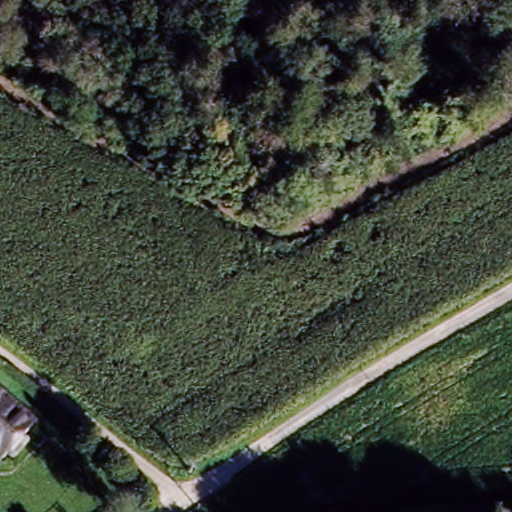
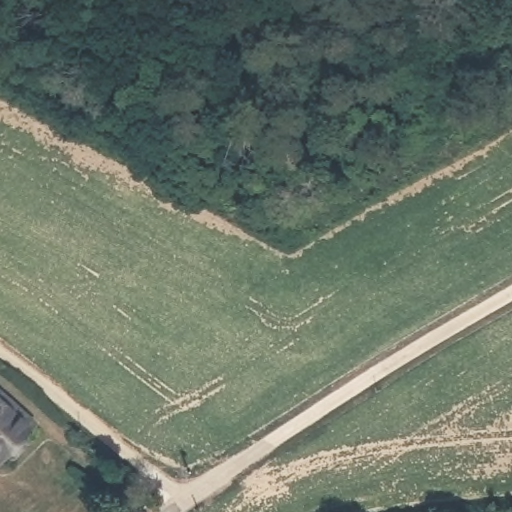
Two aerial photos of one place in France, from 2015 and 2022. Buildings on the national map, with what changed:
unchanged [(24,439),(11,458),(3,452),(0,450),(0,402),(25,418),(23,422),(15,433),(24,439)]
unchanged [(3,452),(0,456),(0,450),(3,452)]

